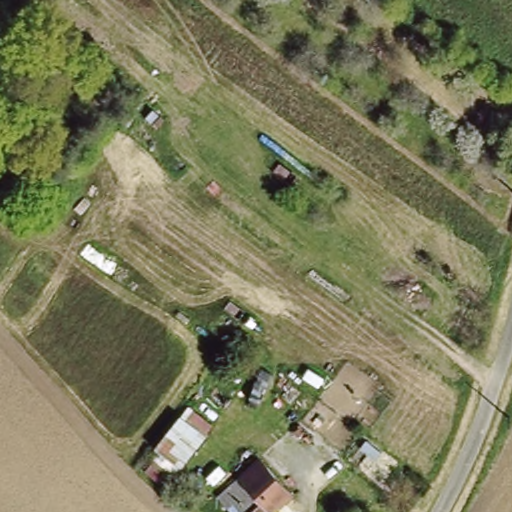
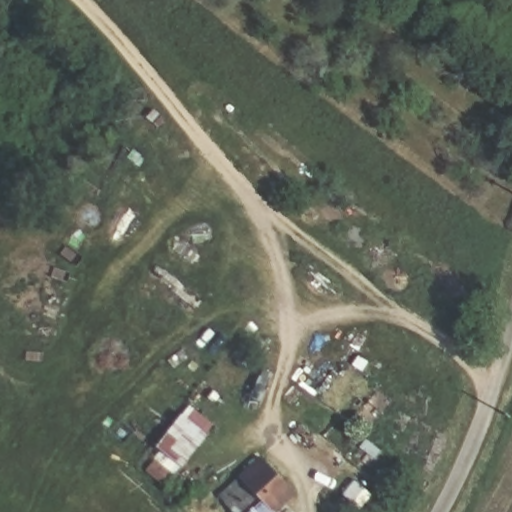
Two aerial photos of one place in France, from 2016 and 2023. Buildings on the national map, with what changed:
unchanged [(298,491),(270,511),(271,512),(234,512),(216,492),(258,453),(298,491)]

